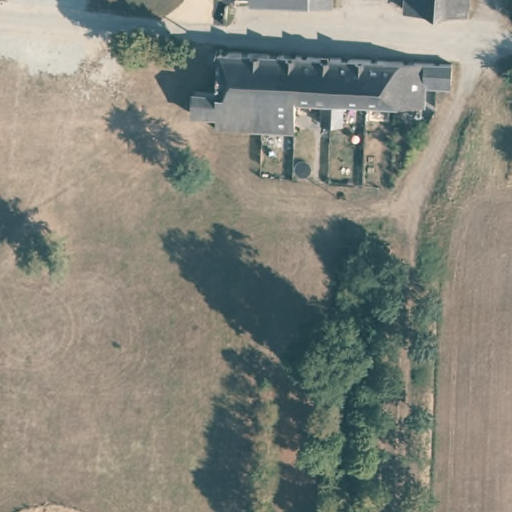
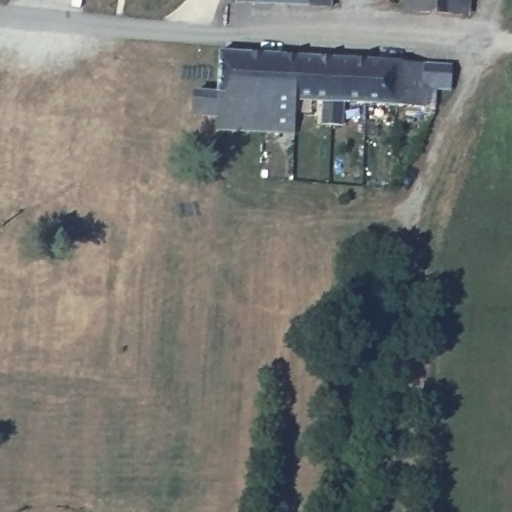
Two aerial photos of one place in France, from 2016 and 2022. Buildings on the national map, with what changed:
unchanged [(252,1),(252,0),(331,0),(331,6),(252,1)]
unchanged [(407,5),(407,0),(470,0),(469,8),(407,5)]
unchanged [(215,129),(216,116),(193,115),(194,92),(217,94),(220,49),(279,53),(275,99),(273,100),(273,131),(215,129)]
unchanged [(341,57),(337,101),(333,101),(332,124),(321,123),(323,101),(298,101),(298,131),(273,131),(273,100),(275,99),(279,53),(341,57)]
unchanged [(427,89),(426,106),(343,103),(342,125),(332,124),(333,101),(337,101),(341,57),(453,64),(453,91),(440,92),(427,89)]

